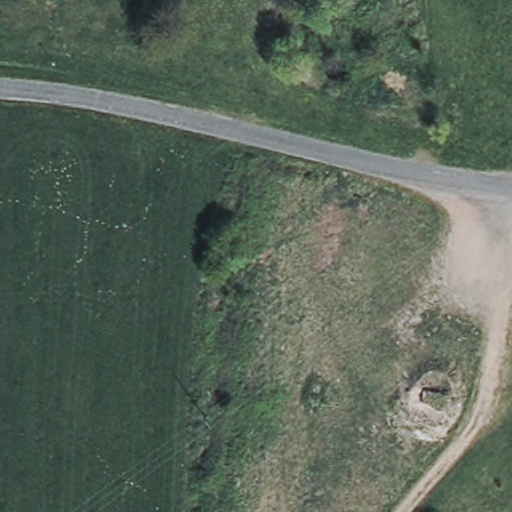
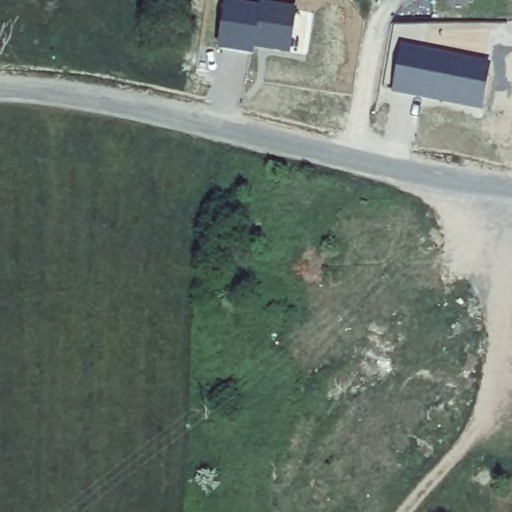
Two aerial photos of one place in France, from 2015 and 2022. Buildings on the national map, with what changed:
new [(258,4),(260,1),(296,7),(290,53),(253,47),(252,53),(217,47),(223,0),(230,0),(258,4)]
new [(490,63),(482,109),(392,91),(399,43),(490,63)]

